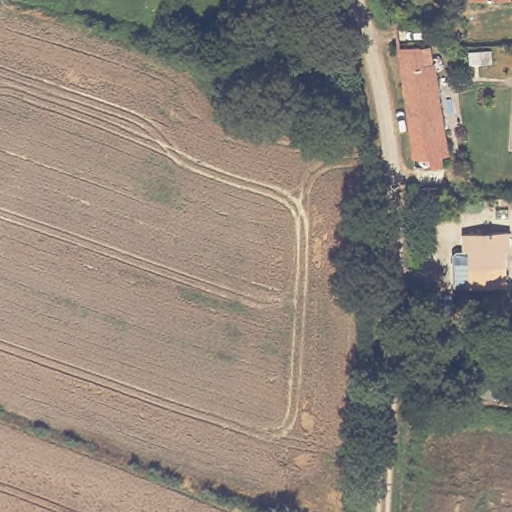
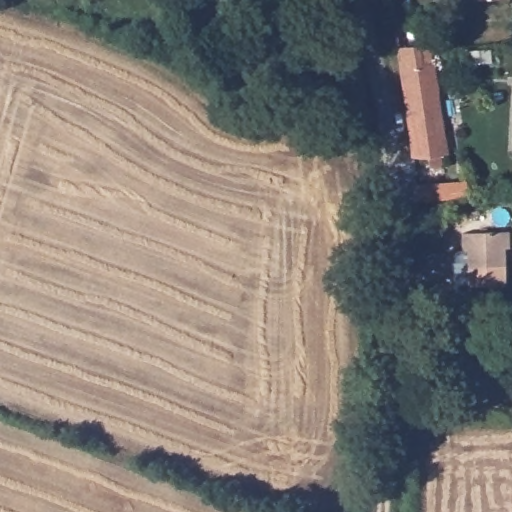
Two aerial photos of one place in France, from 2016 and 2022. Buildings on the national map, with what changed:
unchanged [(511,11),(472,11),(472,0),(511,0),(511,11)]
unchanged [(421,47),(422,56),(429,55),(430,66),(437,65),(451,155),(442,157),(441,165),(438,169),(432,169),(428,167),(424,160),(413,161),(399,50),(421,47)]
unchanged [(509,234),(509,252),(504,252),(506,288),(472,289),(471,251),(465,251),(464,235),(509,234)]

